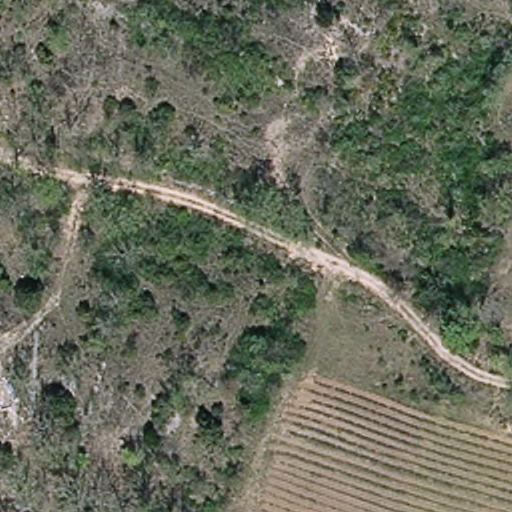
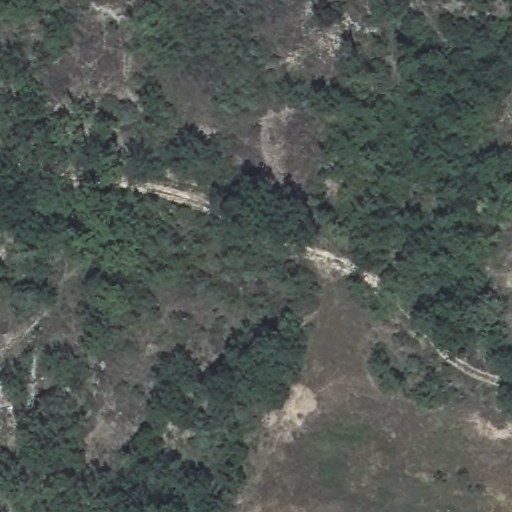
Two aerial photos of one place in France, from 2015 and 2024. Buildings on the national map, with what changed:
unchanged [(12,405),(12,433),(1,433),(0,405),(12,405)]

